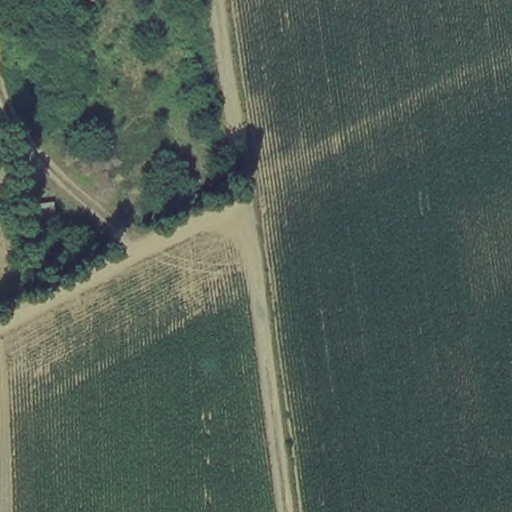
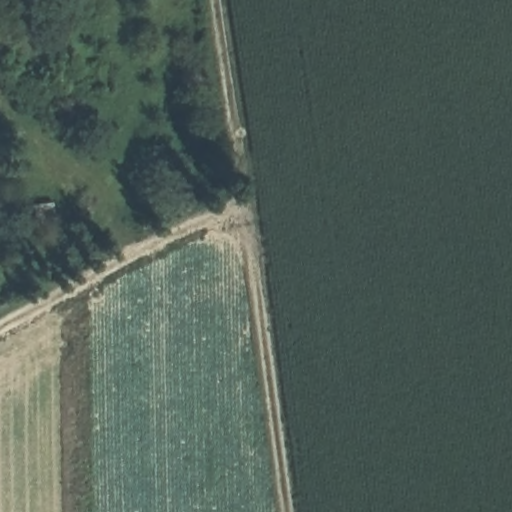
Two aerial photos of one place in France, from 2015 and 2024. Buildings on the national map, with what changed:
unchanged [(54,206),(58,229),(32,232),(31,208),(54,206)]

